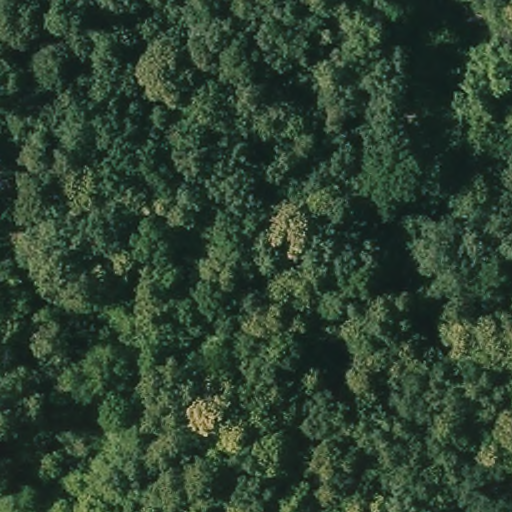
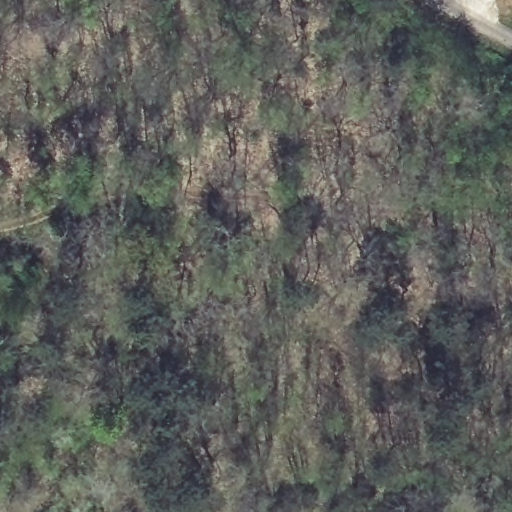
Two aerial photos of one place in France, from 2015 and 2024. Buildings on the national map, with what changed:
[]

